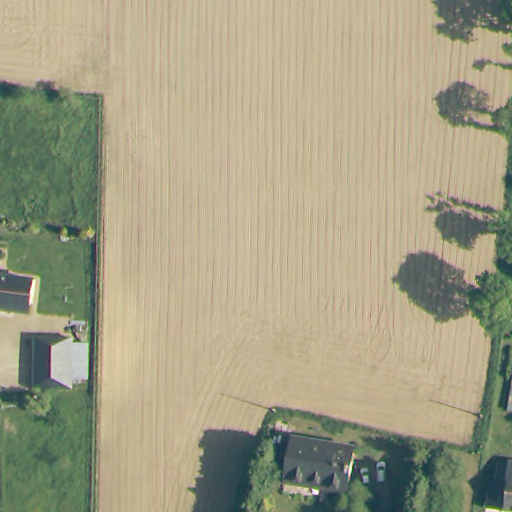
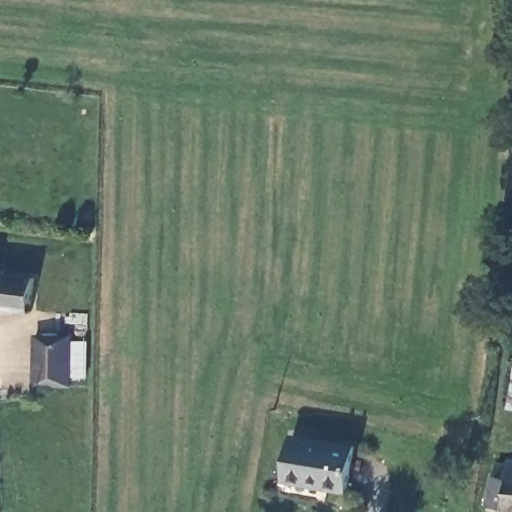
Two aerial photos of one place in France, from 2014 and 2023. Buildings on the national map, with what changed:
unchanged [(0,303),(0,250),(5,251),(5,254),(3,274),(33,278),(44,279),(41,307),(0,303)]
unchanged [(61,343),(70,382),(37,389),(29,349),(61,343)]
unchanged [(299,437),(358,448),(349,493),(333,489),(333,484),(291,476),(299,437)]
unchanged [(493,507),(495,478),(501,478),(501,468),(512,469),(512,509),(493,507)]

